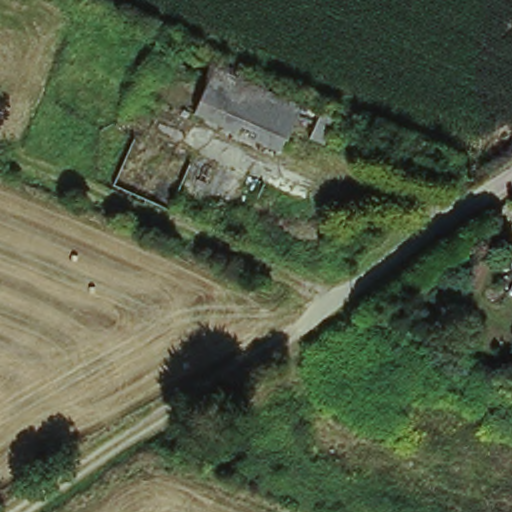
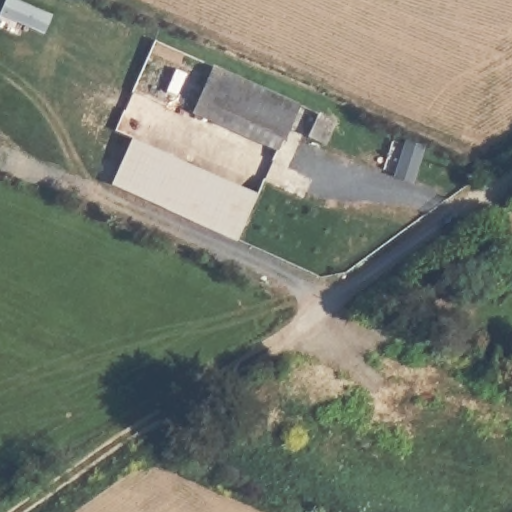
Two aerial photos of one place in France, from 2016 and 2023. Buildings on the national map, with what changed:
unchanged [(294,106),(315,115),(315,114),(332,122),(321,146),(284,129),(273,151),(189,112),(209,67),(294,106)]
new [(113,182),(132,139),(255,194),(236,237),(113,182)]

